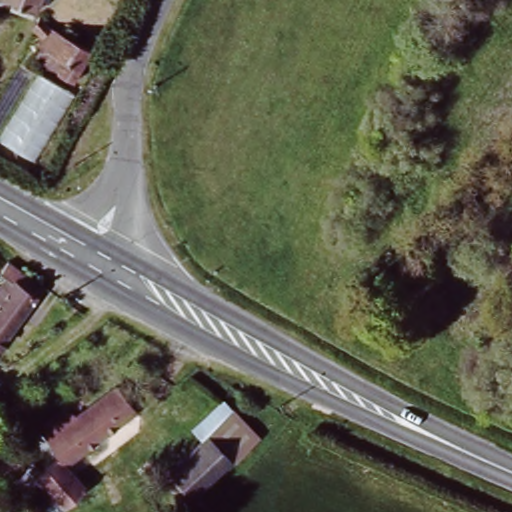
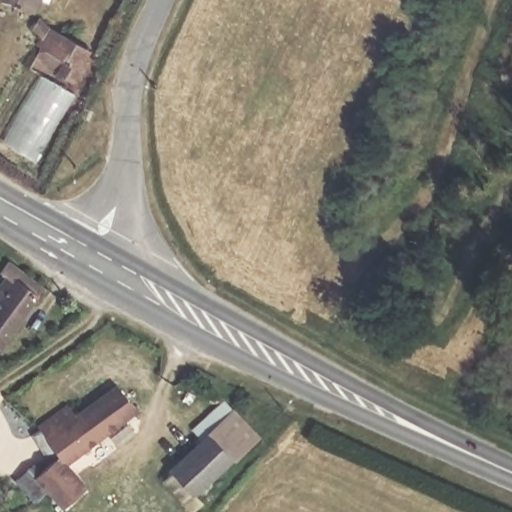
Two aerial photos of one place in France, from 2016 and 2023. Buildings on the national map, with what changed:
unchanged [(0,2),(0,0),(37,0),(31,15),(0,2)]
unchanged [(74,90),(57,81),(58,79),(34,66),(38,57),(31,53),(36,47),(27,33),(34,19),(45,34),(74,49),(91,57),(74,90)]
unchanged [(0,140),(0,137),(39,75),(74,96),(32,160),(0,140)]
unchanged [(8,277),(4,274),(11,265),(46,292),(0,355),(0,289),(8,277)]
unchanged [(28,490),(21,482),(40,467),(45,473),(63,458),(40,429),(70,407),(80,420),(118,391),(131,407),(138,416),(71,466),(75,470),(73,472),(88,491),(64,512),(50,492),(38,501),(28,490)]
unchanged [(212,430),(238,408),(259,432),(234,455),(212,430)]
unchanged [(213,472),(218,479),(190,503),(166,474),(178,463),(176,461),(212,430),(234,455),(213,472)]

